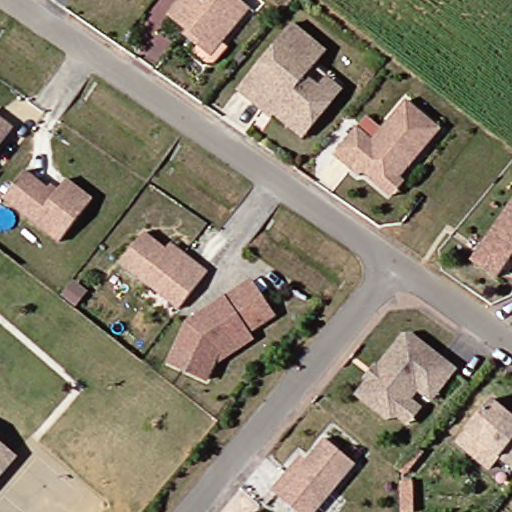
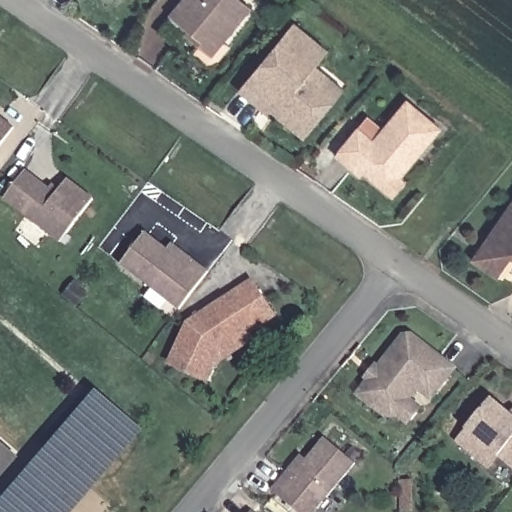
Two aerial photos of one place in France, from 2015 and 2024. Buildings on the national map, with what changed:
unchanged [(208,59),(195,47),(200,42),(186,30),(189,26),(183,21),(169,10),(177,0),(247,0),(251,3),(223,37),(229,42),(216,57),(208,59)]
unchanged [(275,109),(272,112),(263,105),(239,85),(294,17),(327,45),(307,70),(320,81),(328,72),(343,84),(336,93),(314,119),(304,132),(292,122),(275,109)]
unchanged [(393,191),(379,179),(364,167),(361,171),(351,162),(335,149),(358,122),(373,135),(407,94),(441,123),(400,172),(406,176),(393,191)]
unchanged [(0,142),(0,112),(14,123),(0,142)]
unchanged [(60,242),(4,198),(26,170),(49,188),(52,184),(59,190),(68,179),(94,198),(60,242)]
unchanged [(473,255),(485,237),(512,198),(512,252),(510,255),(498,272),(473,255)]
unchanged [(121,263),(145,232),(168,250),(173,244),(185,253),(209,272),(180,309),(121,263)]
unchanged [(213,358),(208,372),(170,357),(186,316),(252,276),(273,311),(248,326),(253,334),(213,358)]
unchanged [(408,417),(397,410),(386,411),(357,390),(368,376),(361,370),(371,357),(378,362),(402,330),(411,329),(455,362),(431,393),(418,383),(410,393),(420,402),(408,417)]
new [(0,503),(96,390),(144,430),(73,512),(0,512),(0,503)]
unchanged [(467,428),(492,397),(510,412),(512,411),(512,466),(467,428)]
unchanged [(316,512),(300,512),(273,490),(293,466),(301,455),(307,460),(326,437),(357,462),(316,512)]
unchanged [(0,469),(0,439),(15,452),(0,469)]
unchanged [(253,508),(258,512),(251,512),(253,508)]

